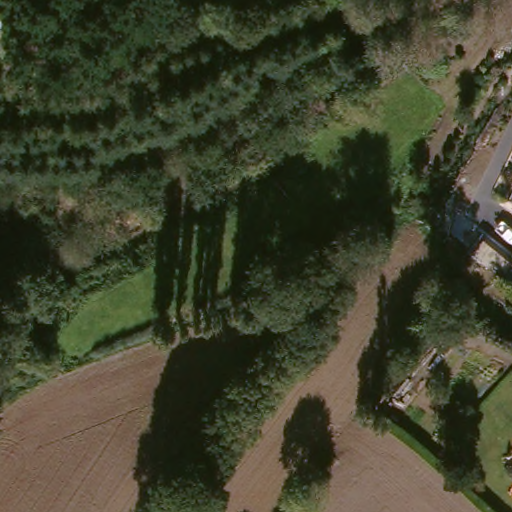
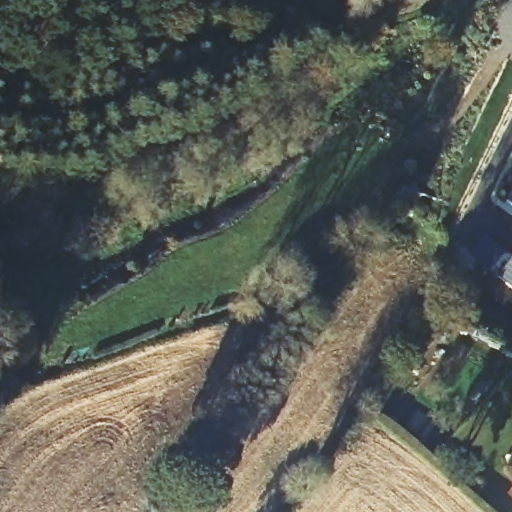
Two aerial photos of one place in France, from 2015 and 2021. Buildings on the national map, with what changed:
unchanged [(481,247),(510,266),(512,264),(512,294),(469,265),(481,247)]

